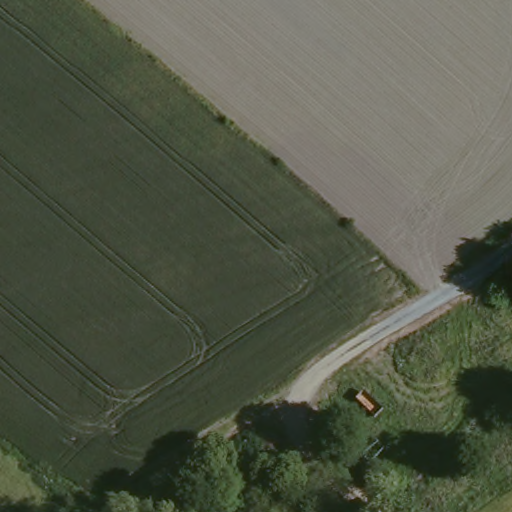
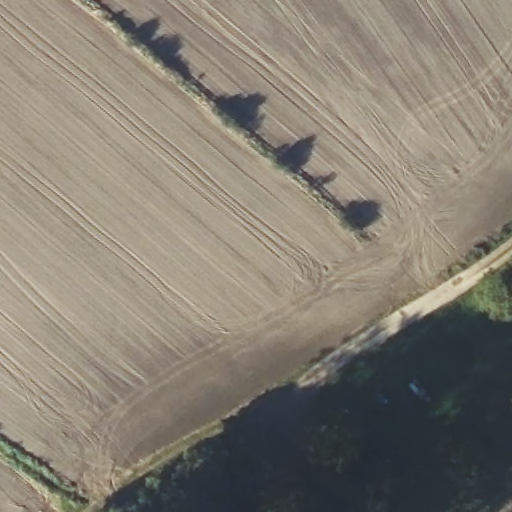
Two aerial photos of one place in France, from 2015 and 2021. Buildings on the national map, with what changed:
[]

